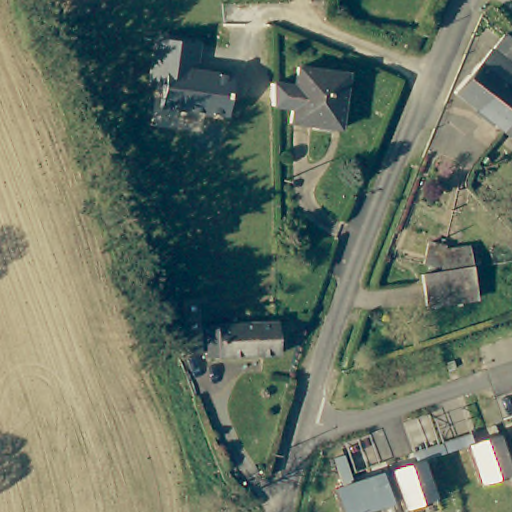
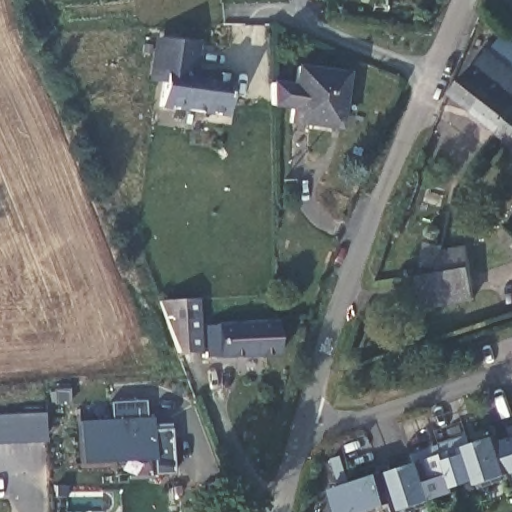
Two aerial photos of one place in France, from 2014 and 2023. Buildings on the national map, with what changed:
unchanged [(463,88),(509,28),(512,31),(512,122),(509,126),(463,88)]
unchanged [(195,69),(233,73),(227,117),(159,109),(163,84),(144,82),(152,36),(198,43),(195,69)]
unchanged [(278,79),(304,82),(308,66),(356,71),(349,125),(302,118),(301,105),(278,105),(278,79)]
unchanged [(509,126),(512,122),(512,128),(509,126)]
unchanged [(494,232),(504,221),(512,229),(512,250),(494,232)]
unchanged [(445,239),(439,263),(424,260),(433,235),(445,239)]
unchanged [(449,244),(467,240),(471,260),(476,293),(426,300),(424,270),(454,263),(449,244)]
unchanged [(512,266),(512,272),(511,266),(512,266)]
unchanged [(163,297),(205,298),(205,321),(208,352),(183,352),(172,323),(163,297)]
unchanged [(214,354),(213,325),(285,323),(285,340),(286,350),(282,350),(214,354)]
new [(152,431),(169,430),(172,473),(153,474),(151,458),(81,463),(79,421),(111,419),(110,402),(144,401),(145,418),(151,418),(152,431)]
unchanged [(414,460),(412,451),(468,432),(471,440),(498,430),(512,473),(512,475),(477,485),(466,445),(423,460),(436,499),(402,510),(389,469),(414,460)]
unchanged [(512,436),(512,446),(509,436),(512,436)]
unchanged [(383,471),(393,504),(366,512),(341,512),(332,486),(340,484),(332,457),(343,453),(352,481),(383,471)]

